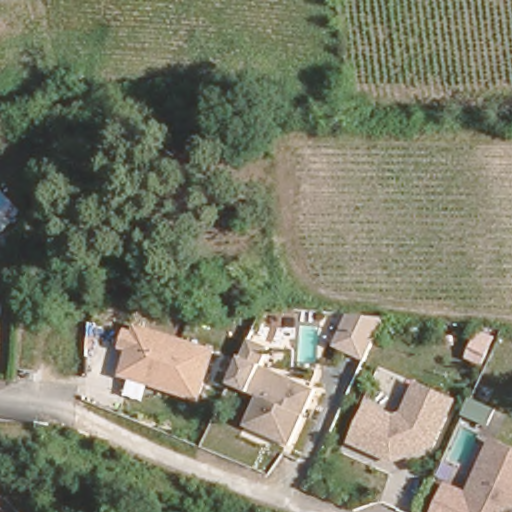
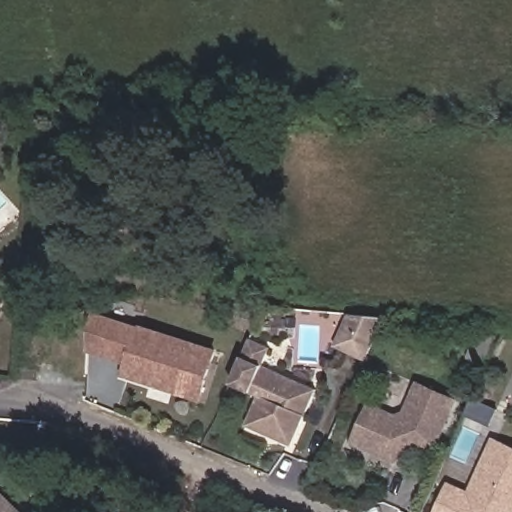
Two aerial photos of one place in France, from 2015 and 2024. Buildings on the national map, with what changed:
unchanged [(366,363),(333,347),(351,314),(386,319),(366,363)]
unchanged [(205,403),(122,377),(129,352),(120,349),(126,328),(135,331),(139,324),(221,350),(205,403)]
unchanged [(247,427),(260,400),(230,387),(252,337),(272,346),(265,365),(316,389),(293,446),(247,427)]
unchanged [(484,366),(470,359),(477,344),(491,350),(484,366)]
unchanged [(438,447),(411,457),(409,452),(401,455),(400,461),(358,443),(375,407),(401,419),(410,416),(423,386),(458,402),(438,447)]
unchanged [(448,489),(469,498),(493,444),(512,452),(512,512),(438,512),(448,489)]
unchanged [(30,510),(28,512),(0,512),(0,482),(30,510)]

